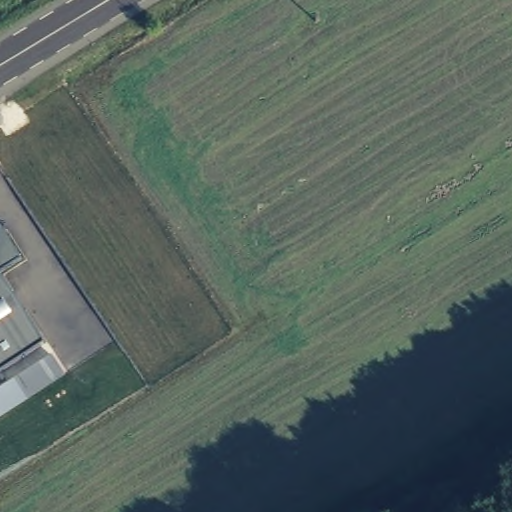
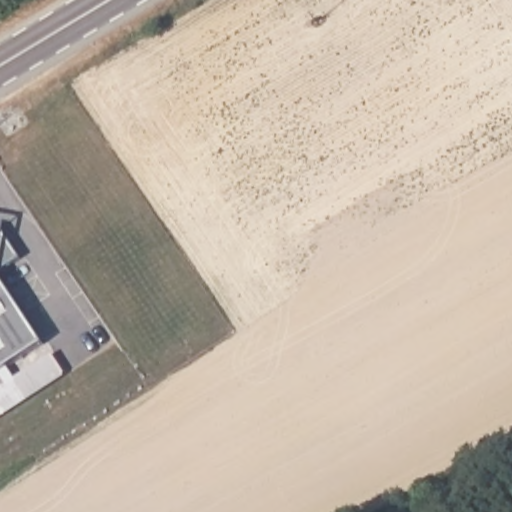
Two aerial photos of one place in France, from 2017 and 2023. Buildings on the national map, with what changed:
unchanged [(21,259),(0,273),(0,229),(21,259)]
unchanged [(43,343),(0,371),(0,278),(43,343)]
unchanged [(65,377),(25,401),(11,379),(51,356),(65,377)]

